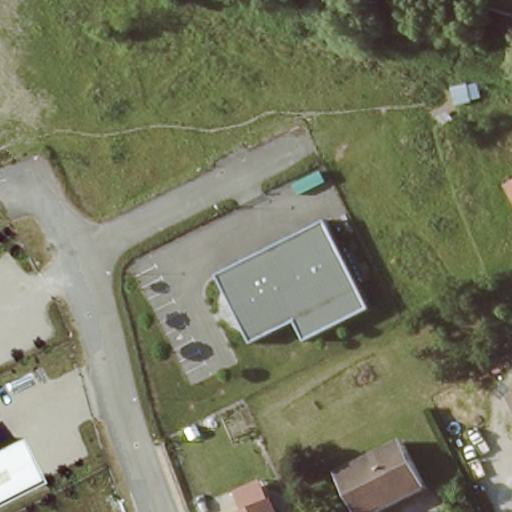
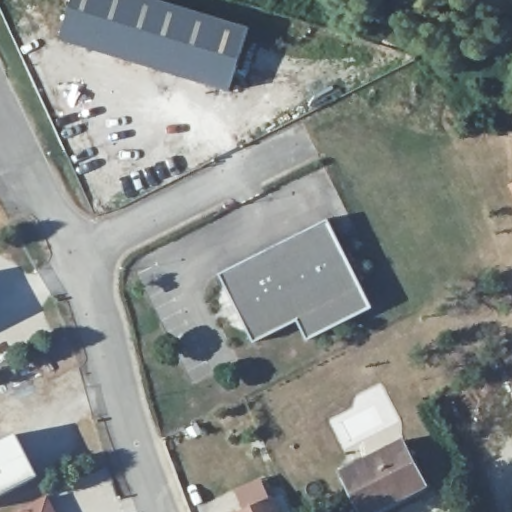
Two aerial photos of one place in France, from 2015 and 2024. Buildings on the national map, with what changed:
new [(61,40),(73,0),(158,0),(249,28),(229,92),(61,40)]
unchanged [(220,299),(221,292),(224,284),(220,274),(328,220),(372,308),(307,341),(299,322),(256,346),(249,332),(242,330),(234,327),(227,320),(222,310),(221,305),(220,299)]
unchanged [(0,498),(0,442),(13,435),(35,480),(0,498)]
unchanged [(346,471),(402,441),(424,483),(371,512),(368,512),(346,471)]
unchanged [(245,511),(236,491),(263,479),(278,512),(242,512),(245,511)]
new [(47,498),(54,512),(18,512),(47,498)]

